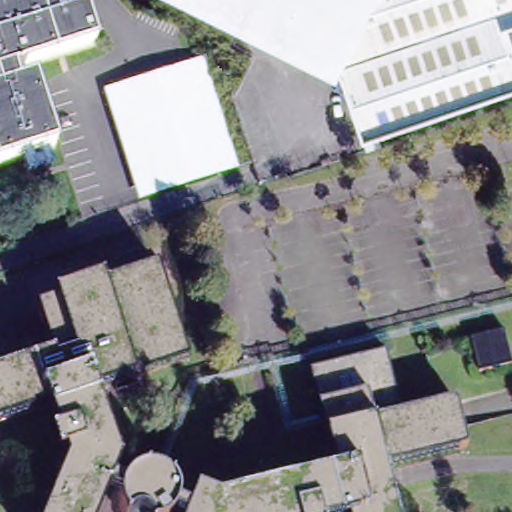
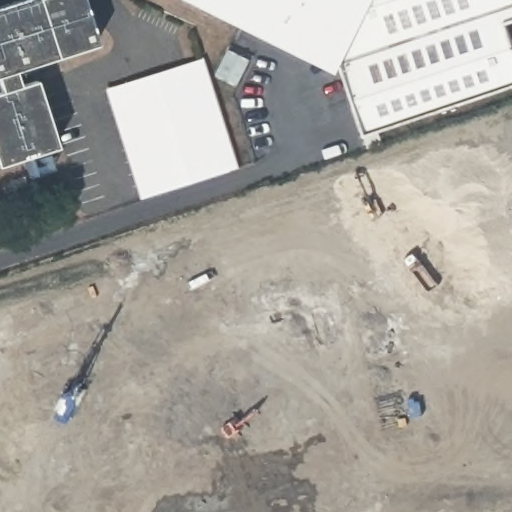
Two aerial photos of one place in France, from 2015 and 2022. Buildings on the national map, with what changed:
unchanged [(79,0),(93,42),(93,44),(11,70),(16,85),(32,79),(54,146),(0,163),(0,0),(79,0)]
unchanged [(202,0),(512,0),(512,24),(502,27),(512,57),(512,89),(358,140),(333,67),(202,0)]
unchanged [(201,57),(238,167),(138,198),(103,88),(201,57)]
demolished [(120,508),(120,503),(120,500),(120,497),(110,492),(102,512),(49,512),(69,462),(52,410),(0,427),(0,373),(56,354),(40,307),(159,267),(191,363),(99,395),(122,463),(116,481),(125,485),(125,484),(127,482),(129,480),(131,478),(133,476),(136,475),(139,473),(142,472),(146,471),(151,471),(154,471),(157,471),(160,472),(163,473),(167,475),(172,478),(175,482),(177,486),(180,490),(182,496),(182,501),(182,505),(182,508),(190,511),(197,494),(217,502),(337,473),(312,372),(389,353),(404,414),(460,401),(471,450),(387,470),(398,512),(121,512),(120,508)]

